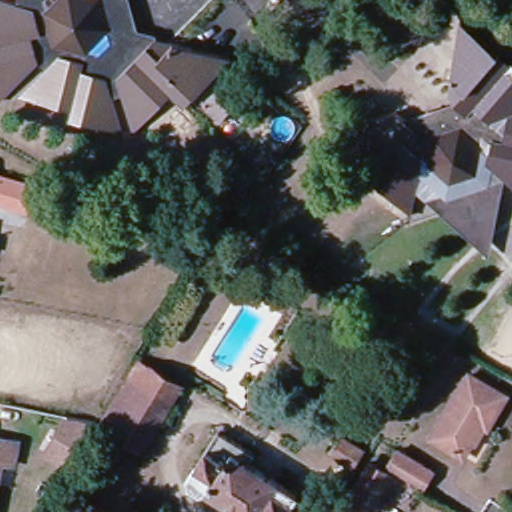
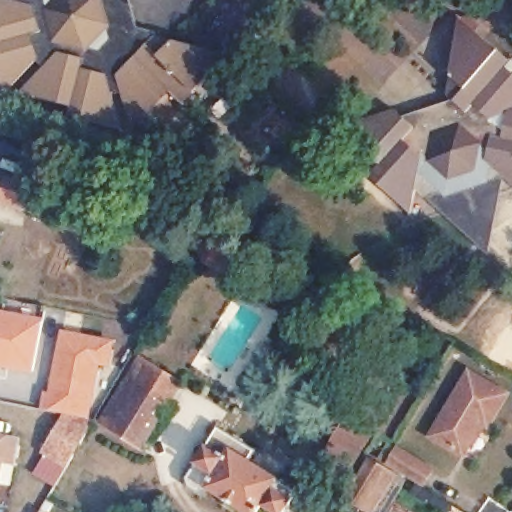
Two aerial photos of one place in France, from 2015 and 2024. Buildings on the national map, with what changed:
unchanged [(150,44),(225,63),(179,112),(165,100),(129,137),(117,100),(107,103),(117,137),(63,126),(65,115),(11,102),(37,75),(31,69),(0,100),(0,7),(8,9),(11,0),(95,0),(106,32),(150,44)]
unchanged [(95,0),(122,0),(132,35),(149,40),(150,44),(106,32),(95,0)]
unchanged [(399,123),(448,107),(442,101),(456,26),(505,67),(502,72),(512,81),(512,193),(500,185),(484,261),(422,204),(437,198),(415,179),(407,220),(364,183),(374,170),(333,134),(390,115),(399,123)]
unchanged [(57,202),(48,227),(0,211),(0,184),(57,202)]
new [(0,365),(0,311),(45,319),(35,372),(0,365)]
new [(64,416),(42,411),(45,392),(50,392),(62,332),(115,342),(110,366),(103,365),(91,422),(64,416)]
unchanged [(152,335),(168,344),(154,366),(184,385),(172,403),(127,377),(152,335)]
unchanged [(172,403),(144,451),(99,424),(127,377),(172,403)]
unchanged [(461,382),(497,403),(478,435),(473,431),(452,463),(422,445),(461,382)]
new [(55,488),(35,476),(47,457),(42,455),(64,416),(91,422),(95,423),(55,488)]
unchanged [(194,497),(184,491),(183,483),(213,435),(248,457),(243,467),(275,487),(274,487),(292,499),(284,512),(257,512),(230,512),(201,495),(194,497)]
unchanged [(341,436),(363,448),(351,467),(329,453),(341,436)]
unchanged [(11,448),(8,469),(0,467),(0,446),(11,448)]
unchanged [(387,466),(397,448),(431,469),(421,486),(387,466)]
unchanged [(366,508),(349,498),(370,462),(396,478),(377,512),(368,512),(365,510),(366,508)]
new [(45,512),(40,512),(41,510),(45,512)]

